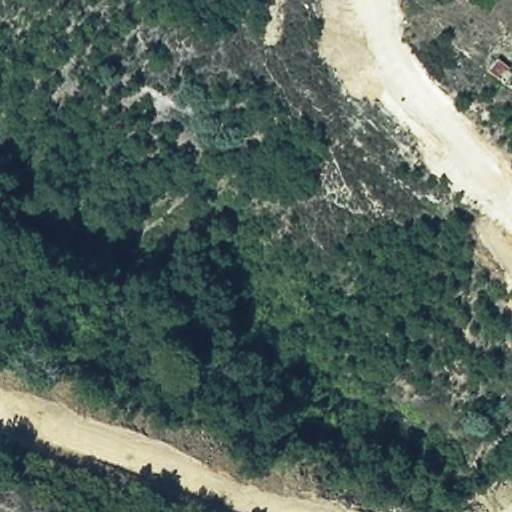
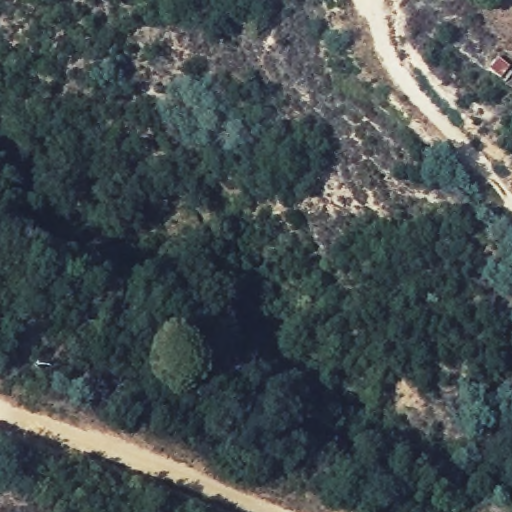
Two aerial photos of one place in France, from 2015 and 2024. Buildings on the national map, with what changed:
unchanged [(512,64),(512,75),(505,87),(486,72),(500,53),(512,64)]

